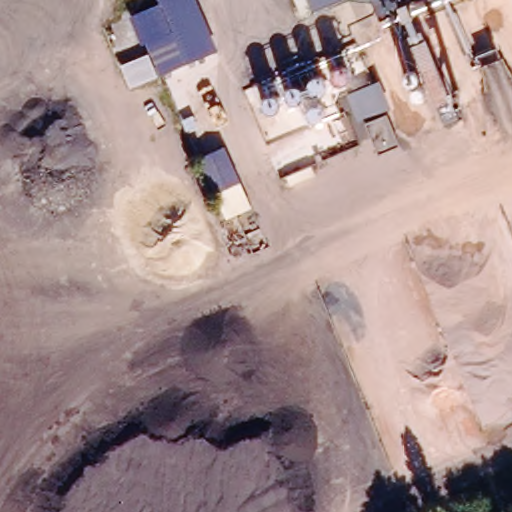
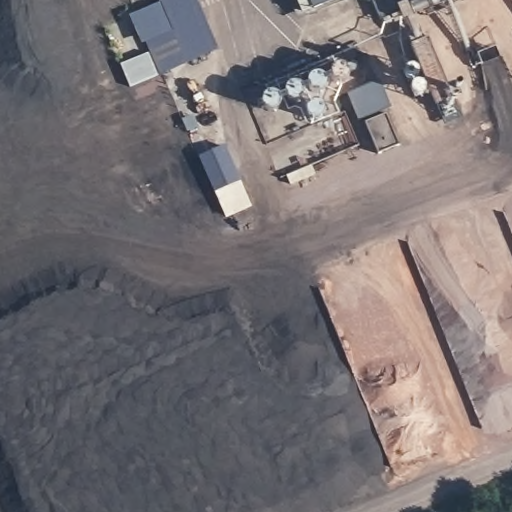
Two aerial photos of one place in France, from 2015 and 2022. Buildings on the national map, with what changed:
unchanged [(159,0),(188,0),(210,52),(159,73),(133,14),(160,2),(159,0)]
unchanged [(343,0),(301,17),(294,0),(342,0),(343,0)]
unchanged [(404,101),(392,67),(406,62),(387,18),(423,11),(458,113),(436,120),(426,93),(404,101)]
unchanged [(385,108),(355,120),(346,96),(377,84),(385,108)]
unchanged [(394,119),(407,149),(387,158),(374,129),(394,119)]
unchanged [(200,161),(224,150),(251,212),(225,222),(200,161)]
unchanged [(317,171),(322,180),(298,191),(294,182),(317,171)]

